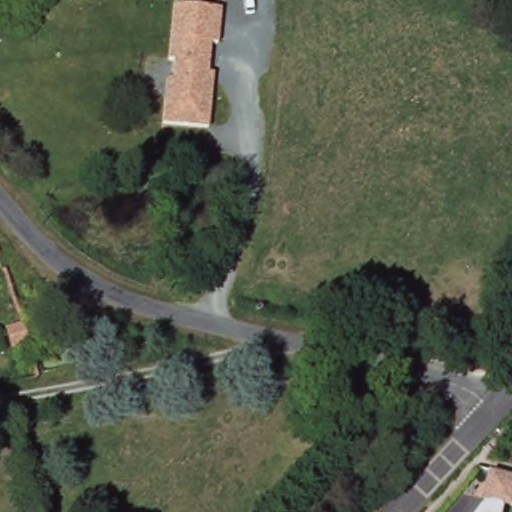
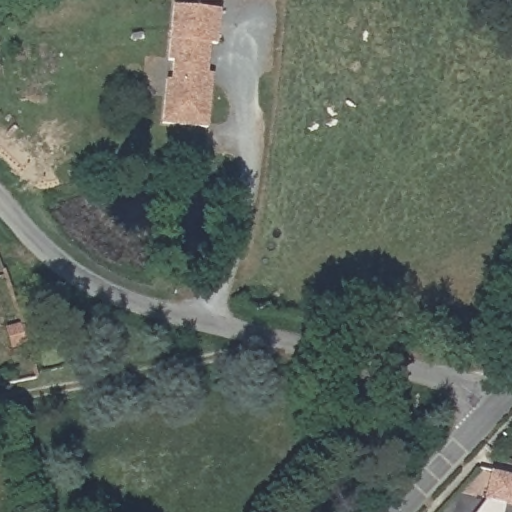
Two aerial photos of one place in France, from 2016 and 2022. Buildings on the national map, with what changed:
unchanged [(223,7),(220,45),(212,45),(210,73),(215,74),(209,128),(162,122),(167,76),(174,78),(177,60),(171,59),(176,2),(223,7)]
unchanged [(19,325),(25,343),(12,347),(6,330),(19,325)]
unchanged [(492,469),(512,474),(512,508),(508,507),(507,512),(481,512),(487,501),(492,469)]

